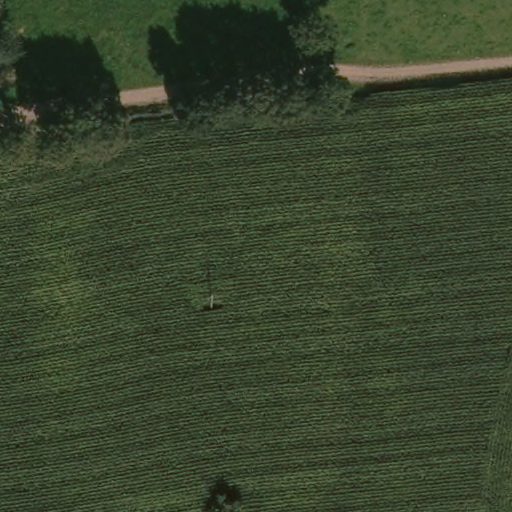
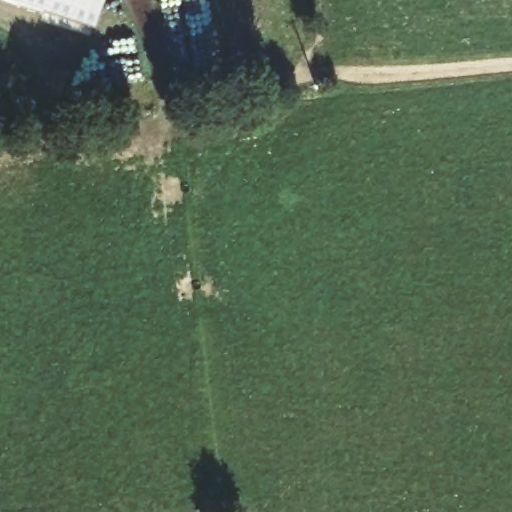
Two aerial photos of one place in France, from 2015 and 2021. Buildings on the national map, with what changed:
new [(93,28),(6,0),(102,0),(93,28)]

